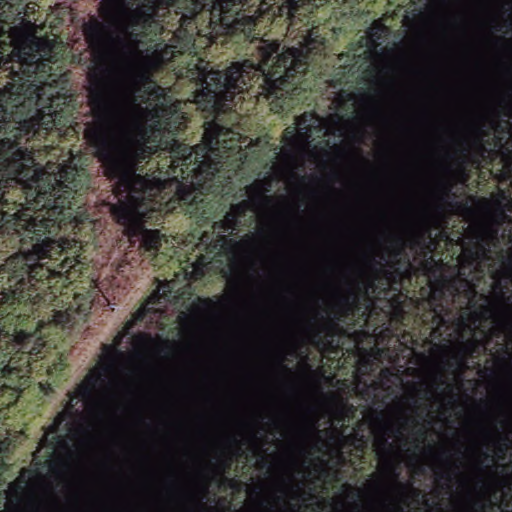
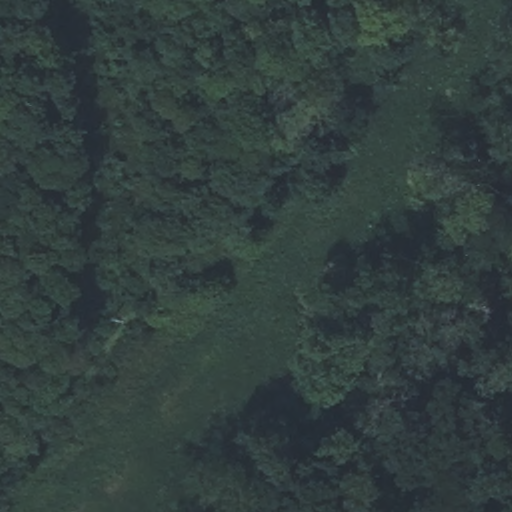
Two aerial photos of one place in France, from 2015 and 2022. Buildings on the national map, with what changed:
unchanged [(512,67),(488,119),(466,111),(491,60),(512,67)]

